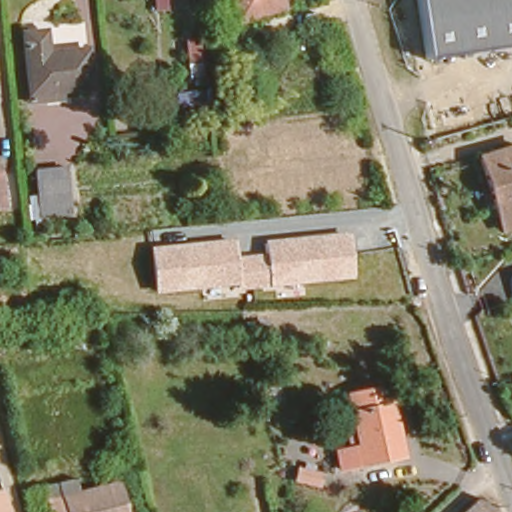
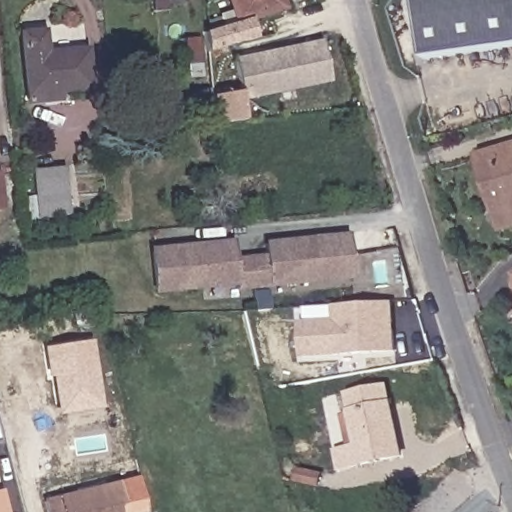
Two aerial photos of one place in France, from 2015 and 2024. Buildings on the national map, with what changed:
unchanged [(229,0),(278,0),(281,8),(238,23),(229,0)]
unchanged [(426,61),(415,0),(512,0),(512,46),(426,61)]
unchanged [(81,89),(51,92),(52,100),(44,101),(44,93),(24,95),(17,30),(76,25),(81,89)]
unchanged [(199,55),(188,56),(185,29),(197,28),(199,55)]
new [(241,101),(232,59),(322,39),(330,82),(241,101)]
unchanged [(501,227),(493,201),(479,157),(512,146),(512,223),(501,227)]
unchanged [(0,209),(0,173),(1,173),(4,209),(0,209)]
unchanged [(68,217),(30,220),(26,176),(64,173),(68,217)]
unchanged [(235,258),(266,255),(264,241),(349,233),(354,279),(239,291),(238,286),(155,297),(149,248),(232,241),(235,258)]
new [(332,307),(393,303),(396,353),(301,358),(299,322),(334,320),(332,307)]
new [(53,377),(49,378),(44,348),(93,340),(103,408),(59,415),(53,377)]
unchanged [(355,398),(389,391),(405,463),(347,475),(343,454),(355,452),(347,420),(359,418),(355,398)]
unchanged [(43,512),(43,508),(114,491),(119,512),(43,512)]
unchanged [(0,512),(0,498),(4,512),(0,512)]
demolished [(488,512),(459,512),(477,498),(488,512)]

